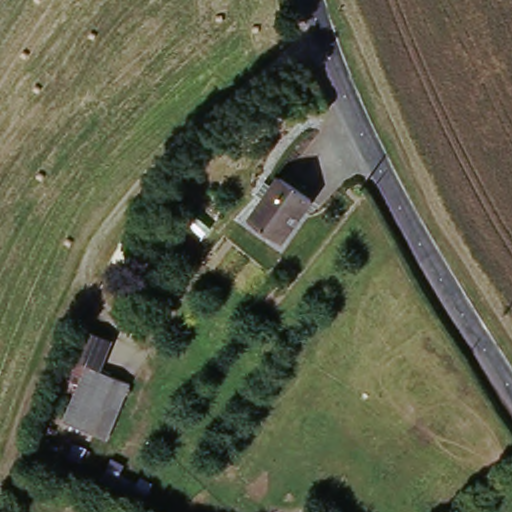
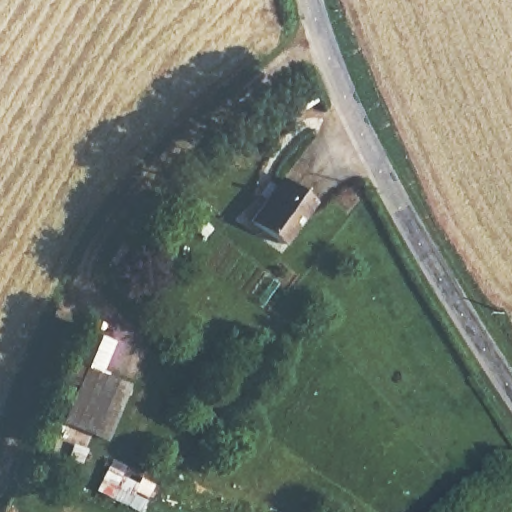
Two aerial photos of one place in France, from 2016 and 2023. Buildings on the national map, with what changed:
unchanged [(271,200),(262,193),(272,181),(280,189),(285,180),(317,203),(287,248),(254,223),(271,200)]
unchanged [(70,380),(92,333),(117,344),(105,372),(94,366),(85,386),(70,380)]
unchanged [(94,366),(105,372),(135,385),(111,439),(70,420),(85,386),(94,366)]

